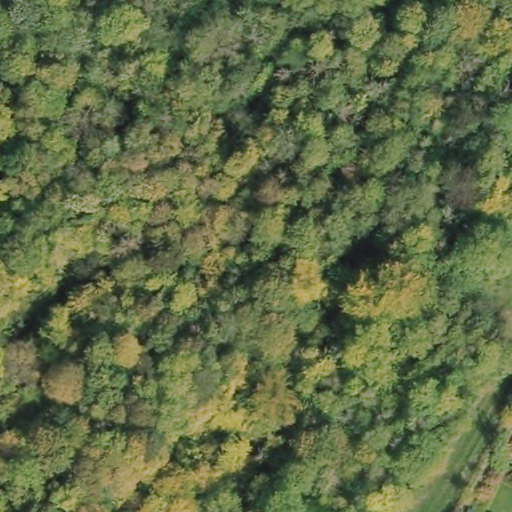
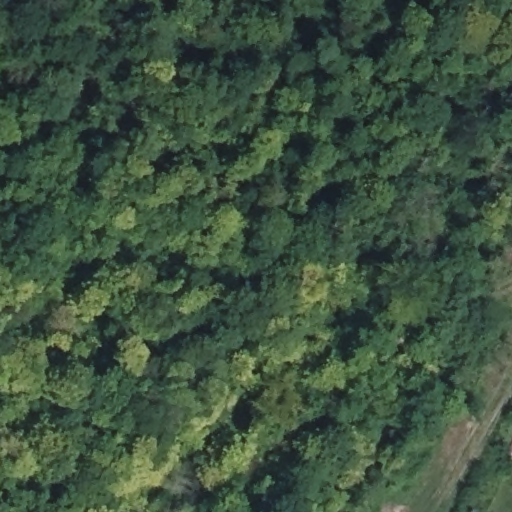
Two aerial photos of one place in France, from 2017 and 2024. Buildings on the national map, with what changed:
unchanged [(512,452),(509,450),(512,444),(512,452)]

